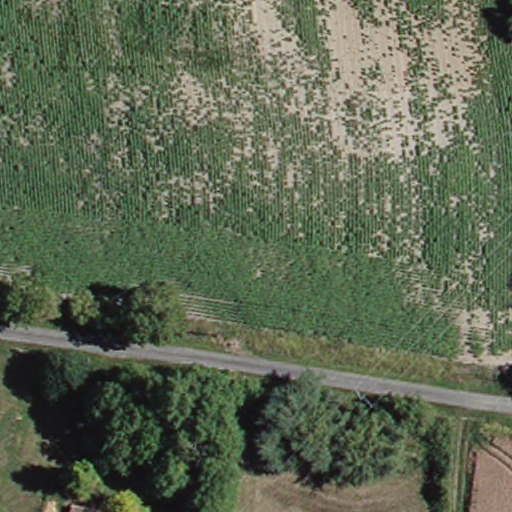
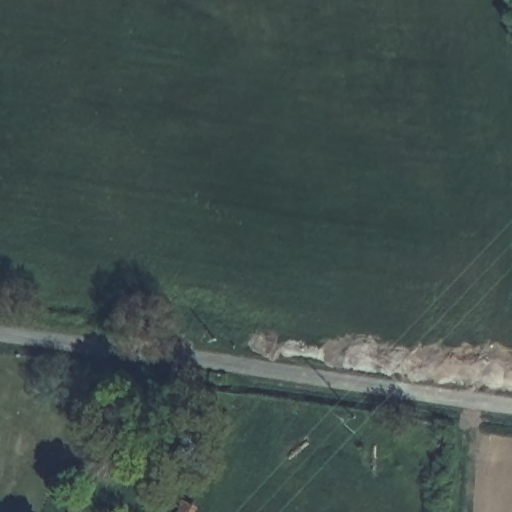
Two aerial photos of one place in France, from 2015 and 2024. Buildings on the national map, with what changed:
unchanged [(188,512),(189,510),(192,512),(188,512)]

